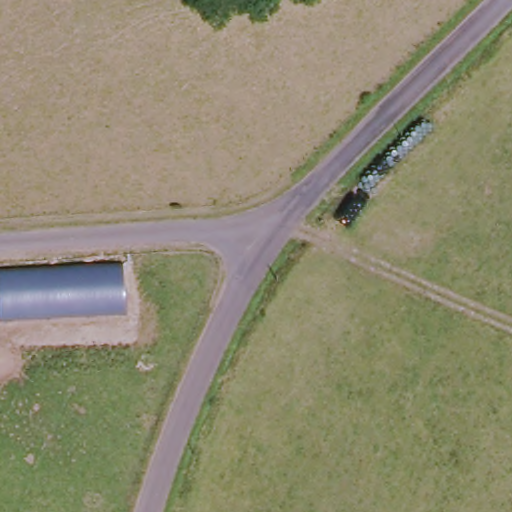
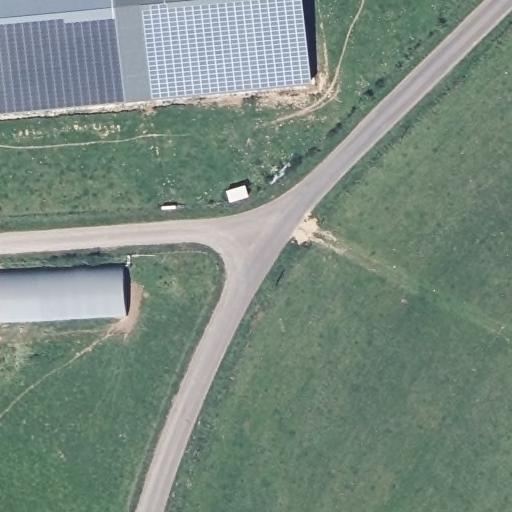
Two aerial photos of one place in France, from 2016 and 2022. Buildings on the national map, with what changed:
new [(116,0),(126,99),(0,111),(0,0),(116,0)]
new [(152,96),(142,0),(304,0),(312,82),(152,96)]
unchanged [(122,266),(125,310),(0,317),(0,274),(122,266)]

